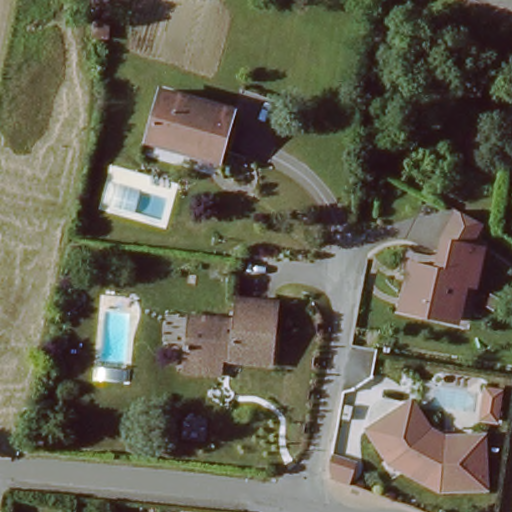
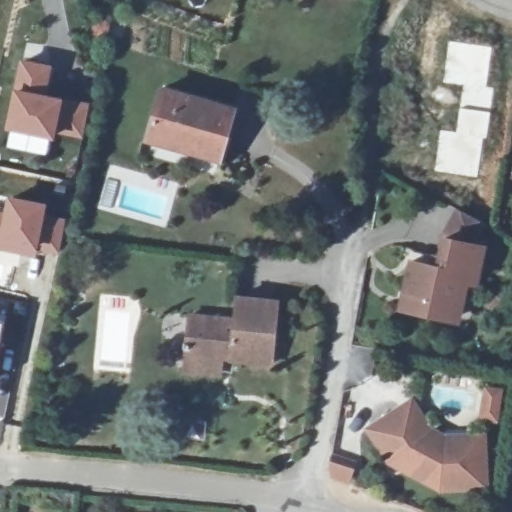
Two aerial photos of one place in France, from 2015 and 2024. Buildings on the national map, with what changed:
new [(66,96),(90,102),(84,136),(58,131),(56,139),(6,130),(15,87),(22,57),(56,64),(51,93),(66,96)]
unchanged [(148,140),(151,95),(229,103),(224,157),(201,155),(147,150),(148,140)]
new [(50,203),(47,216),(67,220),(58,257),(39,253),(0,246),(0,212),(5,213),(9,195),(50,203)]
unchanged [(407,302),(416,259),(443,265),(447,245),(485,253),(478,291),(463,288),(455,328),(424,321),(404,318),(407,302)]
unchanged [(180,371),(182,356),(187,316),(232,320),(234,295),(278,298),(271,363),(229,359),(229,353),(218,352),(217,360),(215,377),(180,371)]
new [(3,320),(0,336),(0,320),(3,320)]
unchanged [(476,440),(477,450),(479,493),(439,495),(438,487),(421,488),(386,458),(379,462),(360,433),(396,410),(404,405),(423,434),(437,441),(476,440)]
unchanged [(334,480),(330,466),(332,453),(357,458),(350,486),(334,480)]

